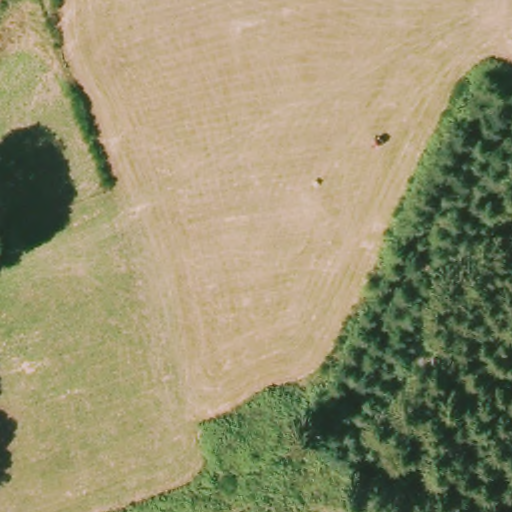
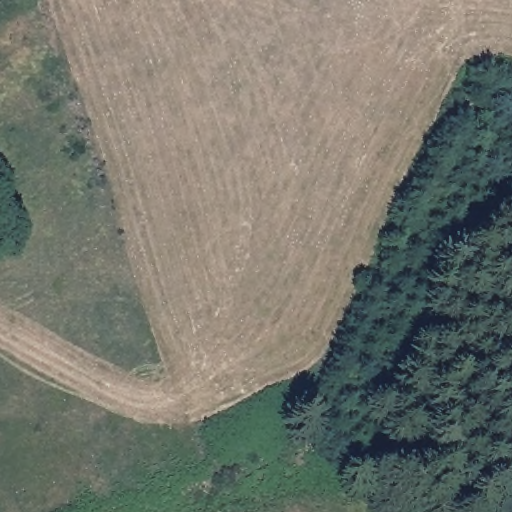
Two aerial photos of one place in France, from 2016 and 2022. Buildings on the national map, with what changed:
[]

